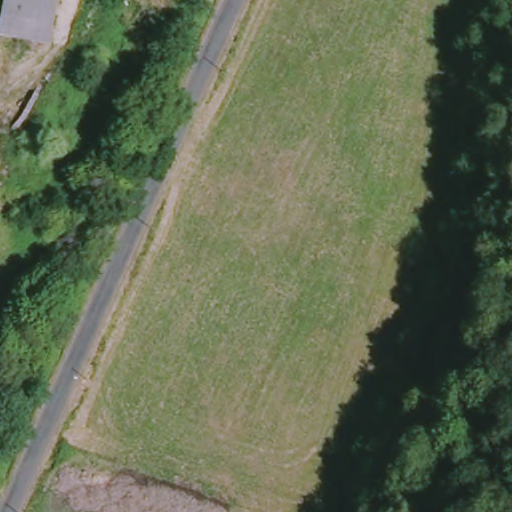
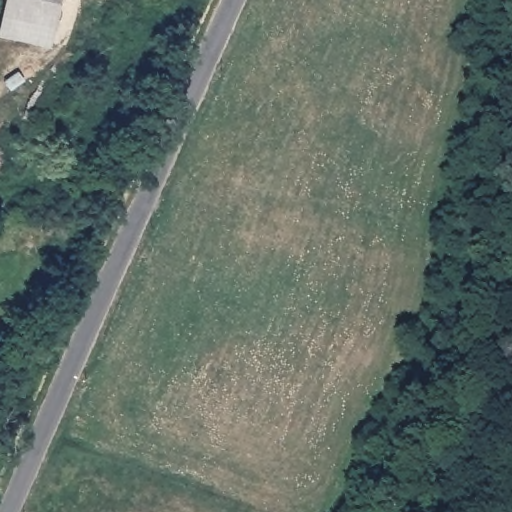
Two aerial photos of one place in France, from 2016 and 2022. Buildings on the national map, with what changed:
unchanged [(11,39),(20,0),(67,0),(55,50),(11,39)]

